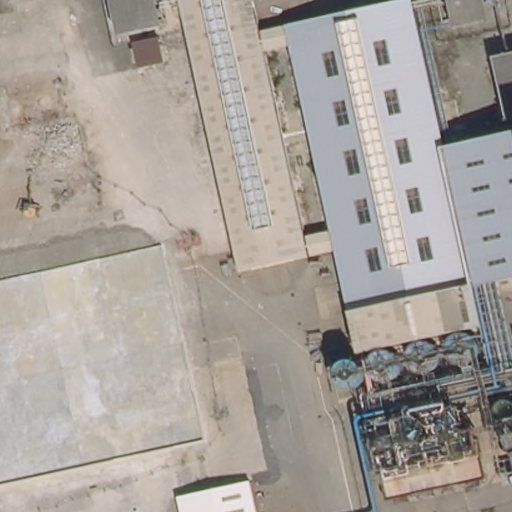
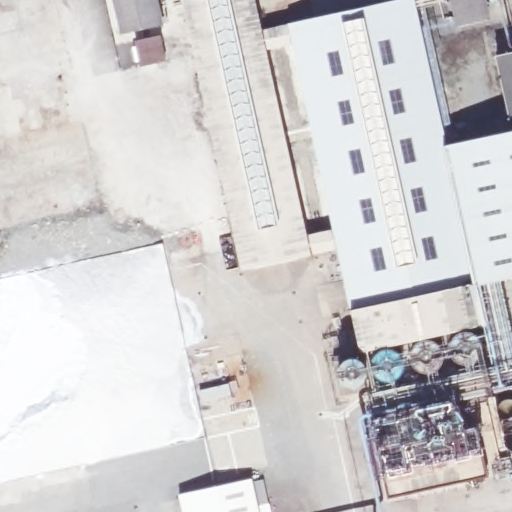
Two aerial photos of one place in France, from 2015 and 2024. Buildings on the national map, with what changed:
unchanged [(279,30),(322,259),(241,275),(186,23),(118,38),(111,0),(260,0),(266,33),(279,30)]
unchanged [(304,26),(303,22),(299,0),(375,0),(378,11),(304,26)]
unchanged [(460,25),(456,0),(481,0),(484,20),(460,25)]
unchanged [(378,11),(401,8),(429,159),(512,144),(512,287),(479,294),(486,333),(341,361),(322,259),(279,30),(304,26),(378,11)]
unchanged [(136,44),(160,37),(166,62),(142,67),(136,44)]
unchanged [(507,91),(501,57),(512,55),(512,90),(507,91)]
unchanged [(512,90),(512,115),(507,91),(512,90)]
unchanged [(394,497),(390,473),(374,477),(364,418),(385,413),(384,399),(469,384),(489,479),(394,497)]
unchanged [(174,497),(254,479),(262,512),(181,512),(174,497)]

